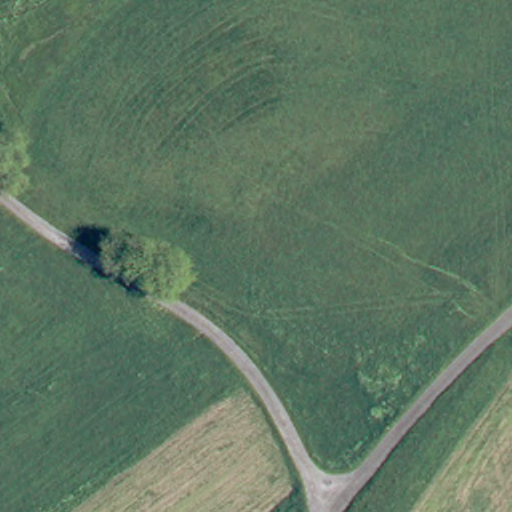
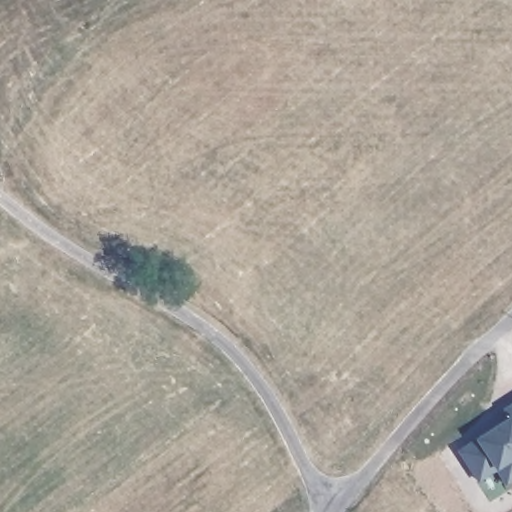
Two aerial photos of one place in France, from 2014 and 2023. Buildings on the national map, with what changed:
new [(512,405),(512,421),(510,419),(504,410),(512,405)]
new [(478,440),(481,444),(488,439),(486,435),(510,419),(512,421),(512,480),(506,483),(496,469),(478,481),(460,452),(478,440)]

